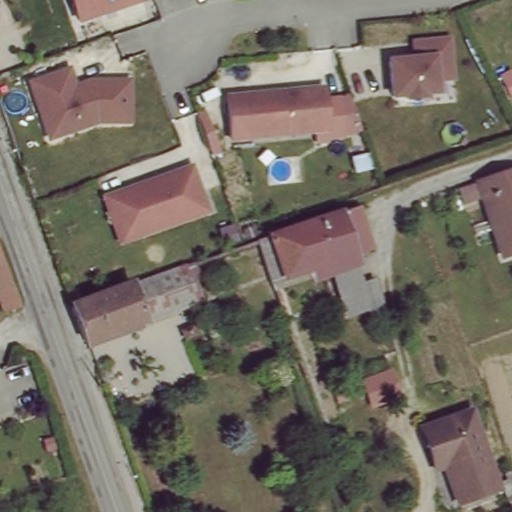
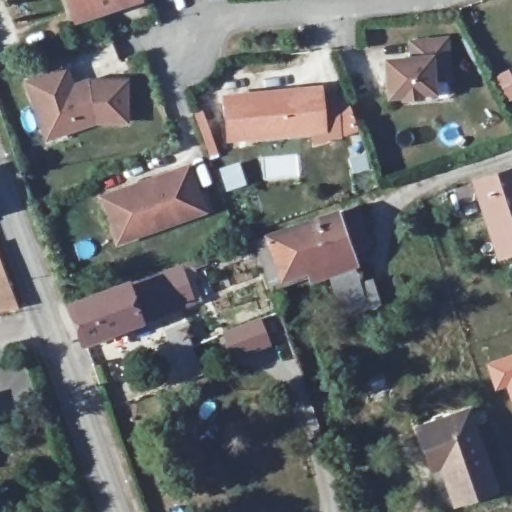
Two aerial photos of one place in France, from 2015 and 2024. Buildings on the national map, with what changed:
unchanged [(136,2),(75,23),(66,0),(135,0),(136,2)]
unchanged [(410,58),(409,42),(443,38),(447,77),(430,79),(431,92),(418,93),(418,96),(401,98),(401,95),(387,96),(384,61),(410,58)]
unchanged [(43,132),(27,83),(65,71),(71,88),(77,86),(88,82),(125,83),(125,123),(93,123),(74,129),(46,139),(43,132)]
unchanged [(323,88),(326,118),(315,131),(231,139),(227,97),(323,88)]
unchanged [(109,228),(100,202),(125,193),(127,198),(151,189),(150,184),(170,177),(187,171),(193,188),(202,216),(183,223),(180,215),(165,221),(168,228),(137,239),(115,246),(109,228)]
unchanged [(480,187),(512,175),(512,252),(503,255),(480,187)]
unchanged [(326,267),(264,289),(253,255),(338,225),(354,220),(360,218),(366,236),(370,261),(351,268),(361,299),(365,310),(343,318),(326,267)]
unchanged [(91,355),(65,302),(184,262),(196,311),(91,355)]
unchanged [(0,312),(0,267),(15,307),(0,312)]
new [(262,317),(273,346),(234,362),(223,332),(262,317)]
new [(505,389),(494,392),(484,363),(512,352),(512,408),(505,389)]
unchanged [(477,415),(504,494),(463,507),(448,470),(438,473),(431,449),(425,430),(477,415)]

